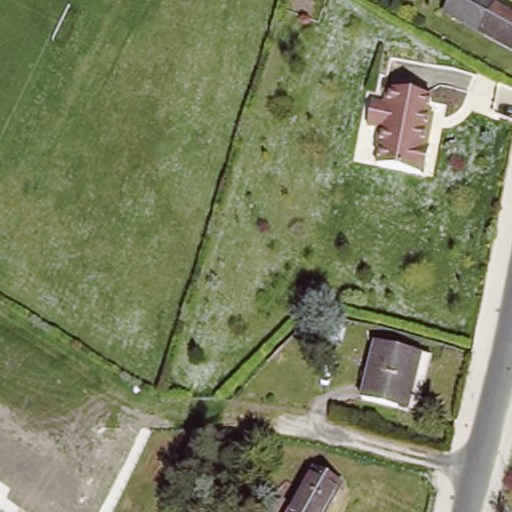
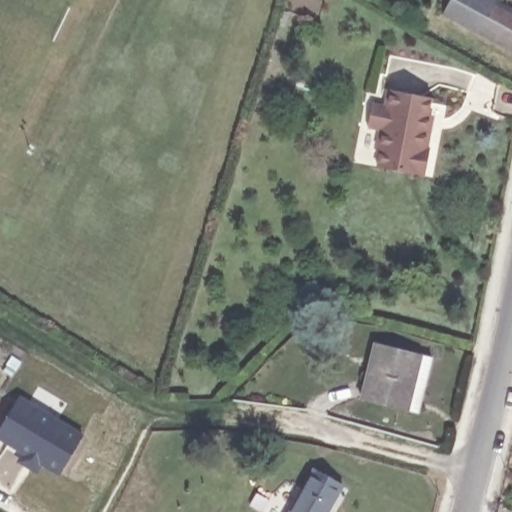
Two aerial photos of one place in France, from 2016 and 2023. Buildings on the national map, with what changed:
unchanged [(447,13),(455,0),(495,0),(512,10),(512,48),(447,13)]
unchanged [(432,134),(428,149),(432,150),(427,178),(394,171),(377,168),(382,150),(377,149),(382,132),(368,128),(374,106),(386,108),(389,92),(434,100),(428,133),(432,134)]
unchanged [(419,415),(361,401),(375,346),(432,361),(419,415)]
new [(84,435),(60,476),(42,464),(35,474),(17,461),(21,453),(0,440),(0,427),(19,395),(84,435)]
unchanged [(290,512),(315,467),(342,482),(325,512),(290,512)]

